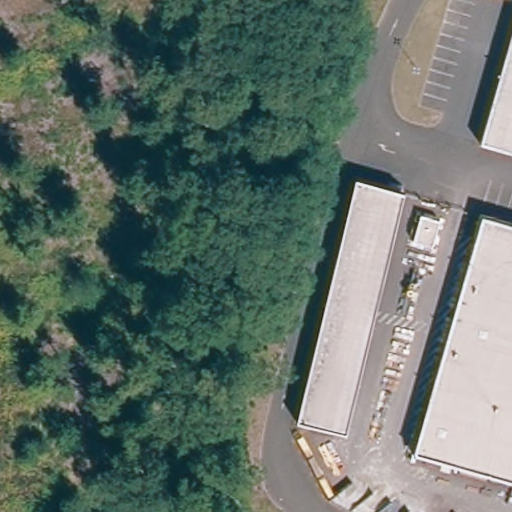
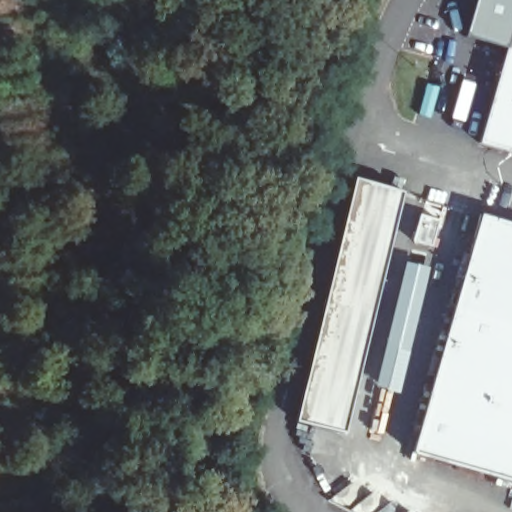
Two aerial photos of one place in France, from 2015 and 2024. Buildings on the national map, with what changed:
new [(475,0),(512,0),(512,37),(509,49),(464,37),(475,0)]
unchanged [(482,144),(512,37),(512,152),(482,144)]
unchanged [(400,192),(371,317),(343,433),(295,422),(323,305),(352,181),(400,192)]
unchanged [(437,221),(430,247),(410,241),(417,215),(437,221)]
unchanged [(478,215),(512,225),(512,482),(411,453),(478,215)]
new [(378,387),(404,262),(424,266),(399,392),(388,390),(378,387)]

